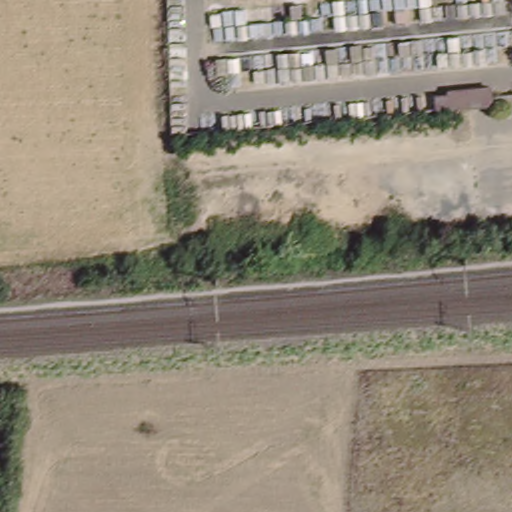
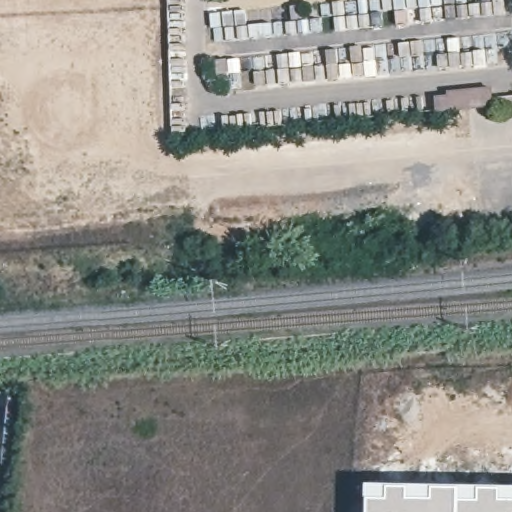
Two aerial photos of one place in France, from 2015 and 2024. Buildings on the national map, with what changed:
unchanged [(494,106),(436,112),(434,96),(448,95),(447,90),(492,86),(494,106)]
new [(512,512),(368,512),(368,483),(512,485),(512,512)]

